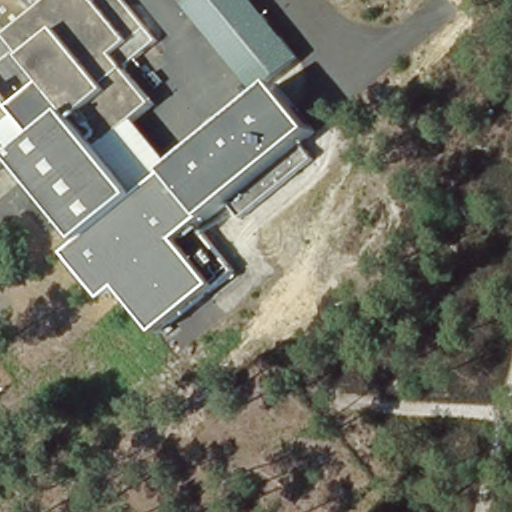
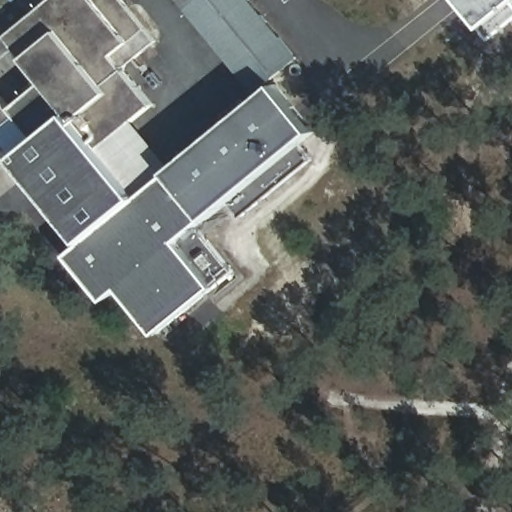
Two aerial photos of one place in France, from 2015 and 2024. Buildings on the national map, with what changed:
unchanged [(0,92),(14,111),(46,84),(27,59),(10,37),(55,0),(122,0),(157,42),(125,69),(155,105),(136,121),(177,169),(278,84),(317,133),(300,146),(311,159),(240,218),(229,205),(211,220),(199,229),(232,273),(218,287),(160,335),(123,291),(109,303),(70,256),(85,242),(16,159),(0,172),(0,92)]
unchanged [(179,0),(254,0),(302,59),(256,94),(179,0)]
new [(478,31),(453,0),(512,0),(512,21),(487,41),(478,30),(478,31)]

